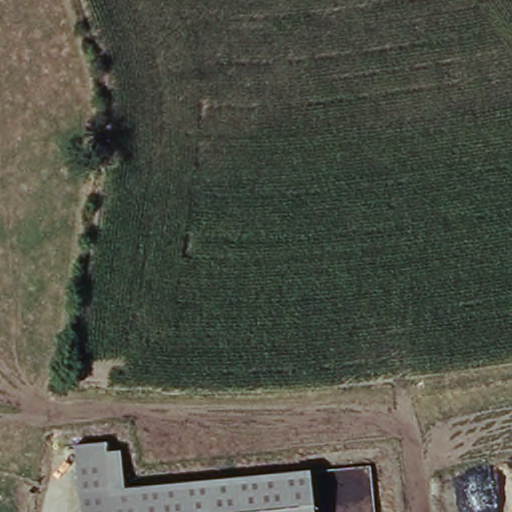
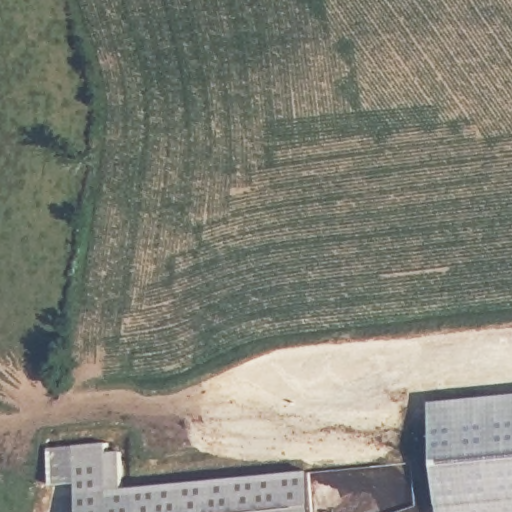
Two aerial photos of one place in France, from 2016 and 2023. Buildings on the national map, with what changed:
new [(512,512),(442,512),(432,403),(512,395),(512,512)]
unchanged [(72,467),(102,465),(105,491),(118,490),(120,512),(76,512),(72,467)]
unchanged [(245,512),(120,512),(118,490),(303,472),(307,507),(245,512)]
unchanged [(307,507),(307,512),(245,512),(307,507)]

